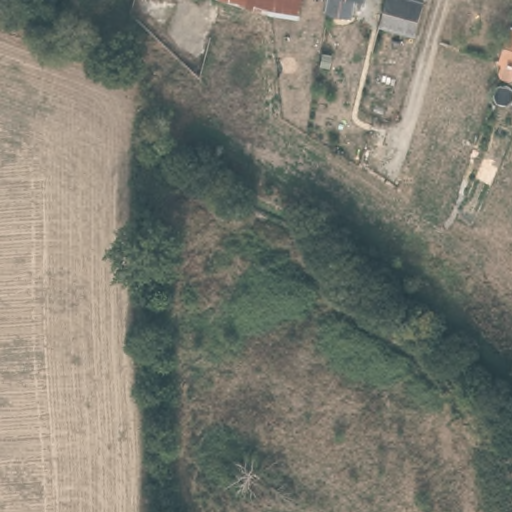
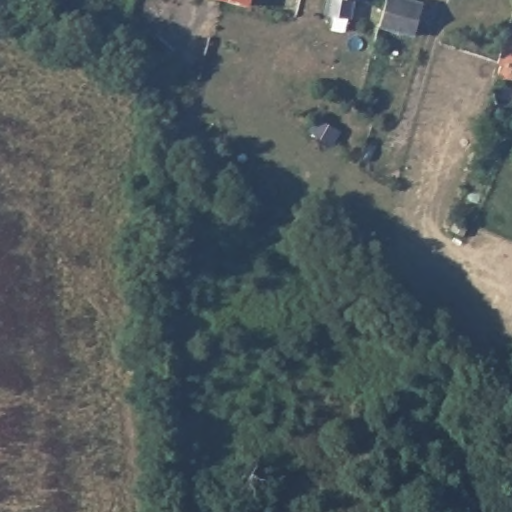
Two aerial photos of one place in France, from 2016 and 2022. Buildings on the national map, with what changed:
unchanged [(241,1),(234,0),(241,0),(241,1)]
unchanged [(342,17),(316,11),(317,0),(347,0),(342,17)]
unchanged [(363,2),(347,0),(364,0),(363,2)]
unchanged [(374,26),(383,0),(421,0),(410,36),(374,26)]
unchanged [(503,80),(498,73),(501,59),(508,24),(512,25),(512,82),(503,80)]

